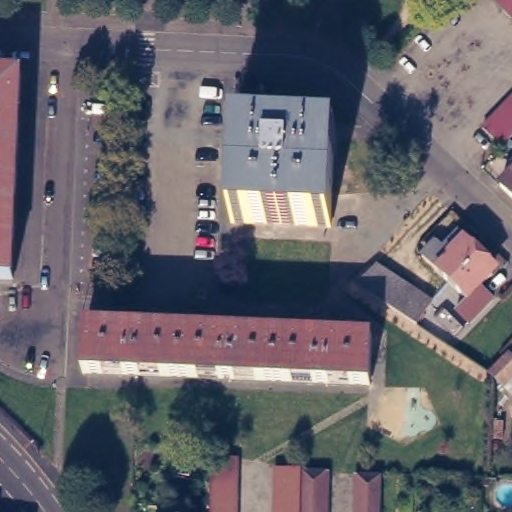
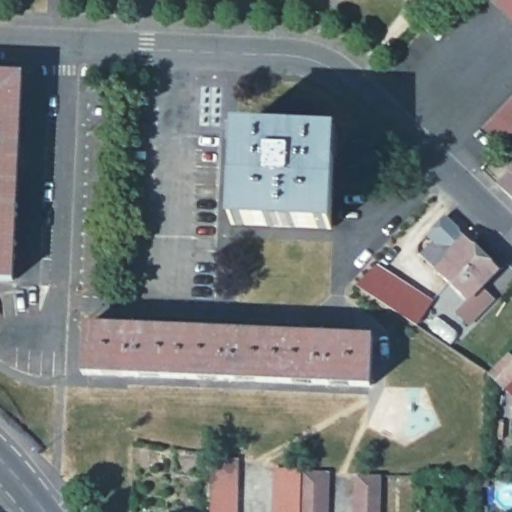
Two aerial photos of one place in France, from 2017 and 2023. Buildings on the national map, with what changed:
unchanged [(498,0),(512,0),(512,14),(498,0)]
unchanged [(0,68),(22,69),(12,268),(12,271),(0,271),(0,68)]
unchanged [(483,125),(512,95),(512,133),(502,143),(483,125)]
unchanged [(229,220),(232,130),(330,134),(325,224),(229,220)]
unchanged [(505,187),(512,180),(512,194),(505,187)]
unchanged [(503,262),(486,281),(504,301),(480,326),(455,306),(466,292),(435,262),(466,229),(503,262)]
unchanged [(362,281),(381,261),(432,303),(422,321),(390,300),(362,281)]
unchanged [(375,336),(371,383),(85,373),(87,320),(375,336)]
unchanged [(510,395),(495,380),(512,363),(512,392),(510,395)]
unchanged [(242,512),(215,512),(216,455),(244,455),(242,512)]
unchanged [(279,512),(280,470),(309,471),(307,512),(279,512)]
unchanged [(331,512),(307,512),(309,471),(332,473),(331,512)]
unchanged [(384,512),(360,512),(362,472),(385,472),(384,512)]

